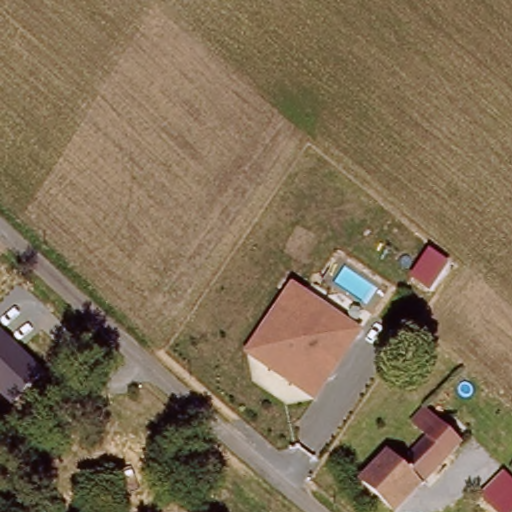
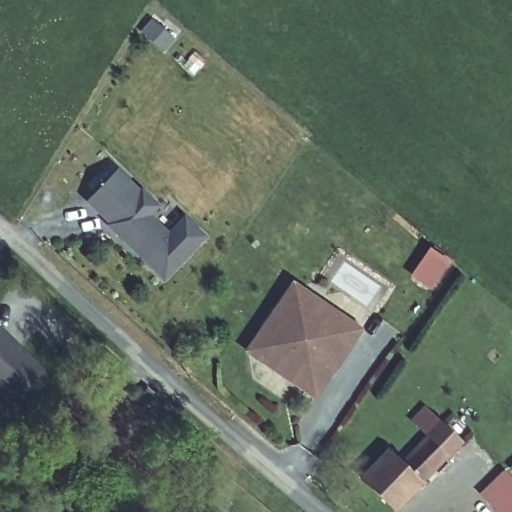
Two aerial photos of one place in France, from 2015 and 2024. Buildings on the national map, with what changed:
new [(113,173),(135,194),(137,192),(153,208),(145,217),(164,236),(180,219),(200,238),(160,279),(141,262),(145,257),(129,242),(120,242),(105,227),(107,224),(85,203),(113,173)]
unchanged [(450,267),(432,292),(408,275),(427,250),(450,267)]
unchanged [(365,326),(317,401),(243,352),(293,279),(365,326)]
unchanged [(11,403),(0,392),(0,327),(44,369),(11,403)]
unchanged [(393,454),(405,466),(429,442),(418,431),(432,418),(460,446),(398,512),(393,512),(363,483),(393,454)]
unchanged [(494,512),(479,497),(504,472),(507,469),(512,474),(512,512),(494,512)]

